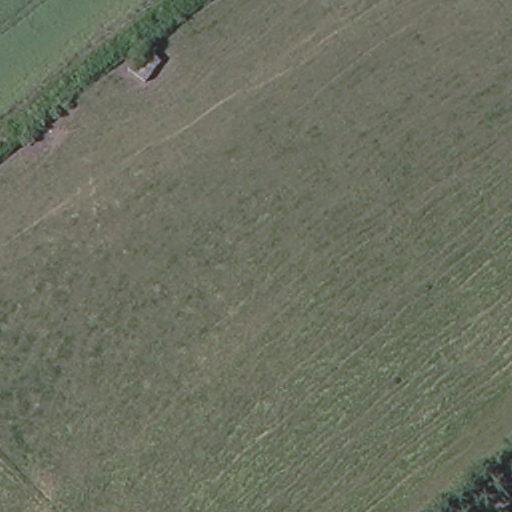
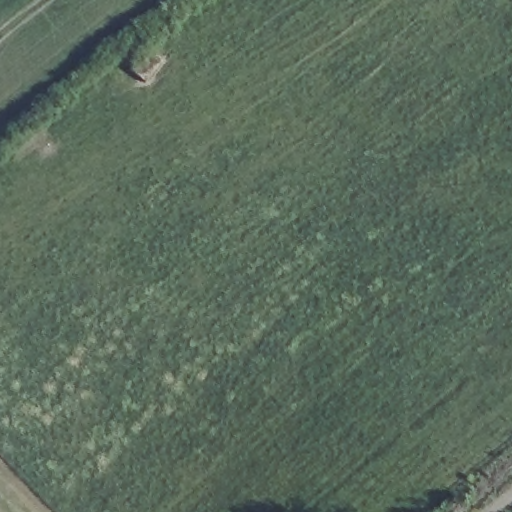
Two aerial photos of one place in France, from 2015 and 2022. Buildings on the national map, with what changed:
unchanged [(125,55),(153,36),(174,65),(143,82),(125,55)]

